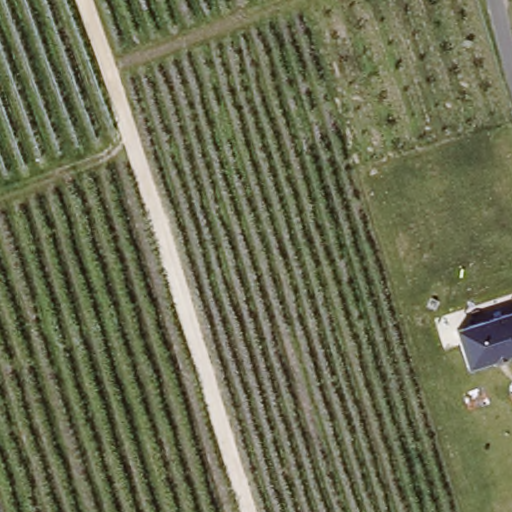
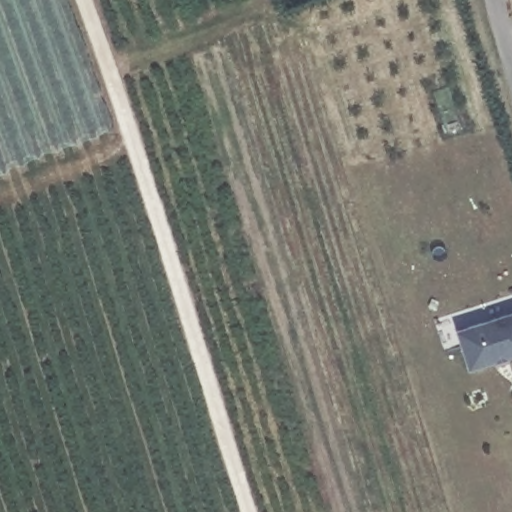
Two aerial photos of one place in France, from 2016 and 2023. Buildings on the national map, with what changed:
unchanged [(457,331),(512,312),(512,356),(469,368),(457,331)]

